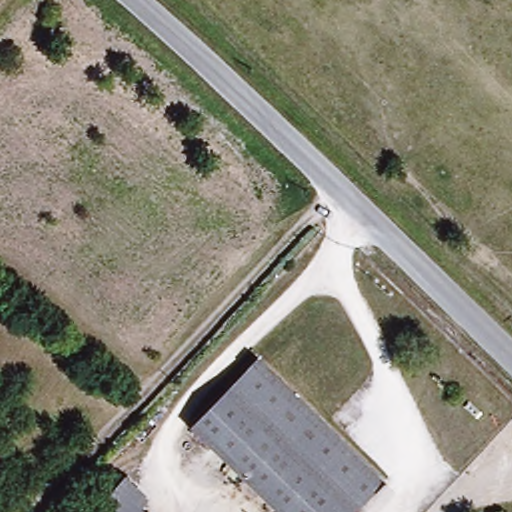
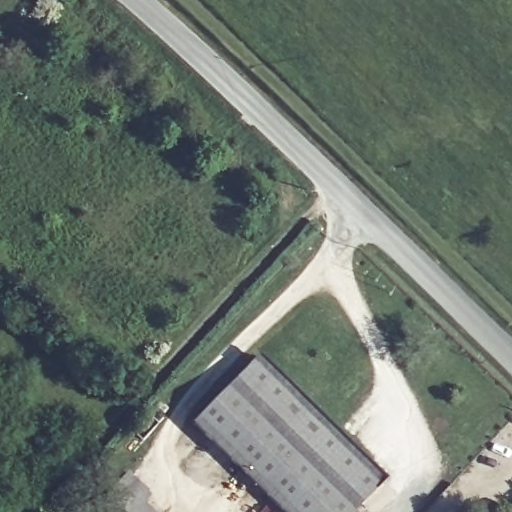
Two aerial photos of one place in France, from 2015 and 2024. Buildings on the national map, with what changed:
unchanged [(378,479),(344,512),(281,512),(189,422),(251,357),(378,479)]
unchanged [(141,500),(153,512),(92,512),(91,512),(127,474),(147,493),(141,500)]

